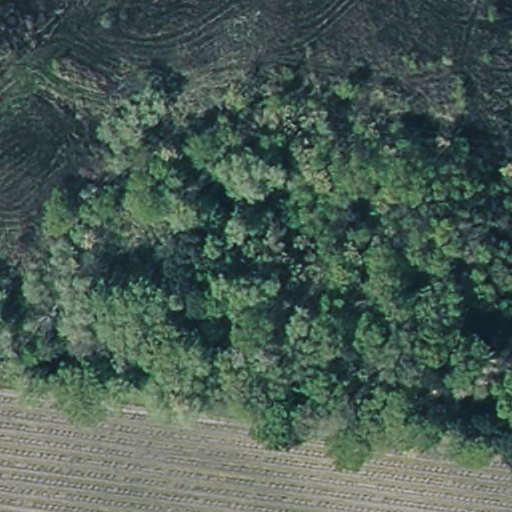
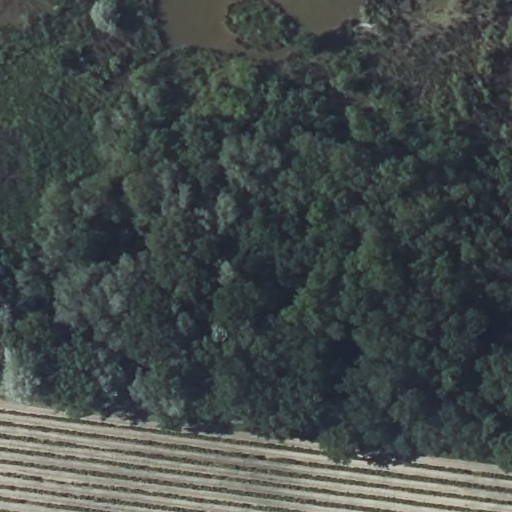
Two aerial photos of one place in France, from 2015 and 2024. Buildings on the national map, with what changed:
[]

